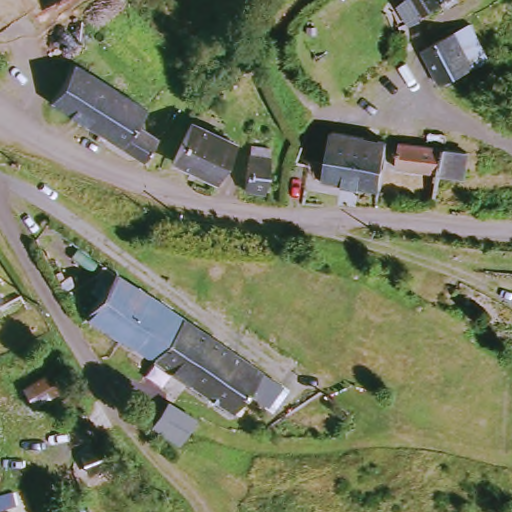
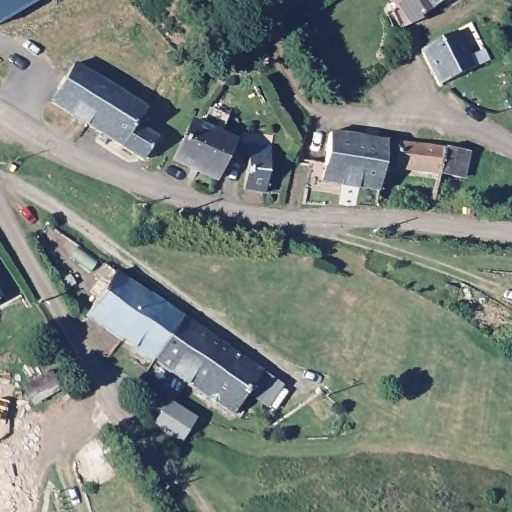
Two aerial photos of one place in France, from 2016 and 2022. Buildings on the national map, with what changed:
new [(40,0),(0,24),(0,0),(40,0)]
unchanged [(438,0),(417,14),(407,0),(438,0)]
unchanged [(473,23),(490,58),(436,83),(420,48),(473,23)]
unchanged [(136,116),(159,130),(141,161),(44,101),(69,61),(140,106),(136,116)]
unchanged [(215,180),(174,160),(192,121),(235,141),(215,180)]
unchanged [(318,195),(320,181),(327,133),(384,140),(377,188),(337,183),(334,196),(318,195)]
unchanged [(461,177),(435,174),(395,168),(399,141),(439,146),(465,150),(461,177)]
unchanged [(265,191),(246,186),(253,153),(272,156),(265,191)]
unchanged [(149,297),(120,340),(84,315),(112,273),(149,297)]
unchanged [(120,340),(149,297),(182,318),(152,361),(120,340)]
unchanged [(182,318),(182,317),(284,386),(269,407),(249,394),(234,416),(152,361),(182,318)]
unchanged [(65,390),(36,408),(27,390),(55,373),(65,390)]
unchanged [(195,421),(180,444),(153,427),(168,403),(195,421)]
unchanged [(4,494),(5,508),(0,509),(0,495),(4,494)]

